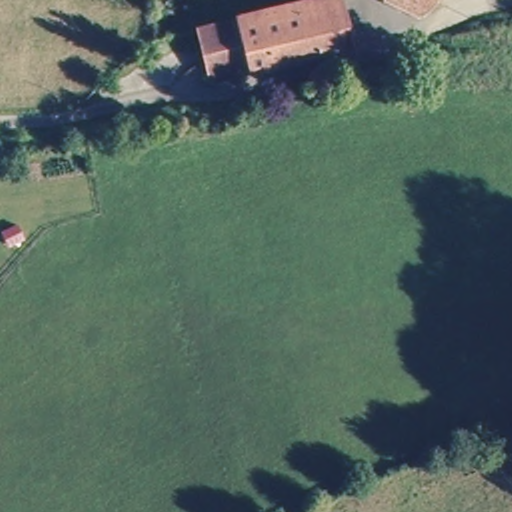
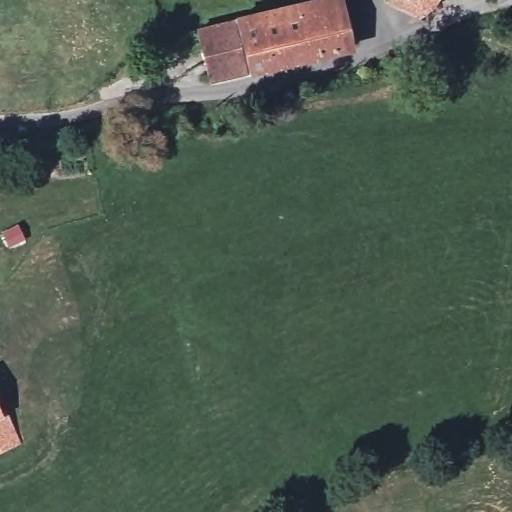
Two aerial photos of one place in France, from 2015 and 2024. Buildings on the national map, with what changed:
unchanged [(425,2),(417,0),(432,0),(425,2)]
unchanged [(342,2),(347,48),(211,75),(204,29),(203,21),(231,17),(342,2)]
new [(8,413),(22,443),(0,453),(0,405),(4,414),(8,413)]

